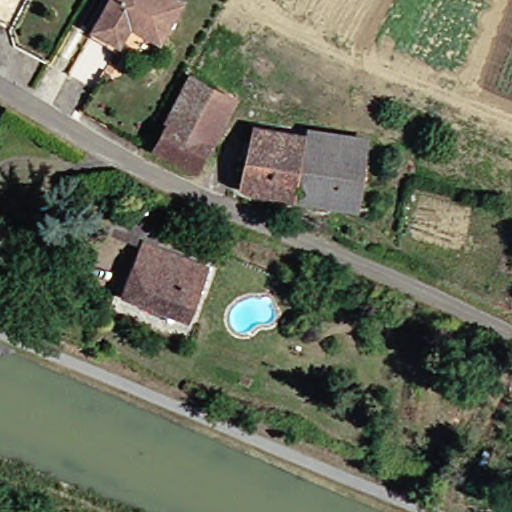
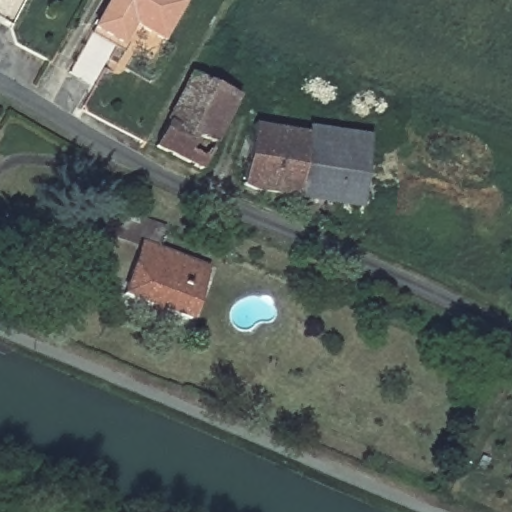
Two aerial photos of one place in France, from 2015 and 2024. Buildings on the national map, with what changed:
unchanged [(124,34),(104,23),(116,0),(186,0),(167,35),(157,51),(124,34)]
unchanged [(242,90),(225,127),(200,115),(195,126),(174,116),(198,67),(242,90)]
unchanged [(195,126),(200,115),(225,127),(204,164),(162,142),(174,116),(195,126)]
unchanged [(364,205),(263,187),(274,124),(370,140),(364,205)]
unchanged [(217,270),(192,323),(129,295),(153,239),(217,270)]

